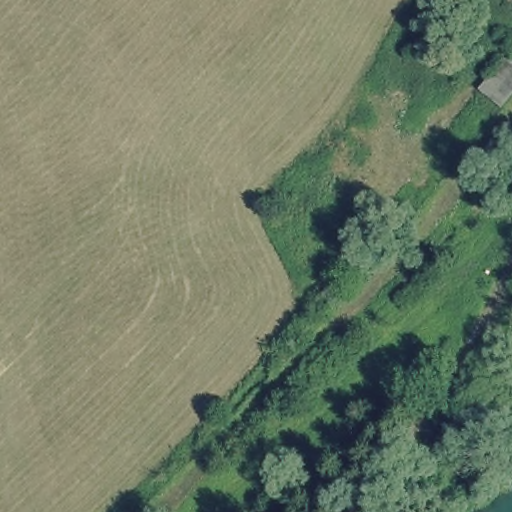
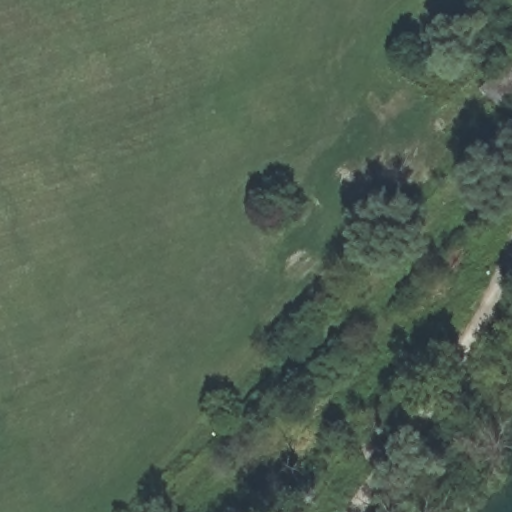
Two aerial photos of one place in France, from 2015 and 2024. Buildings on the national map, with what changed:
unchanged [(438,152),(483,97),(475,89),(501,59),(482,44),(495,29),(512,43),(512,89),(451,161),(438,152)]

